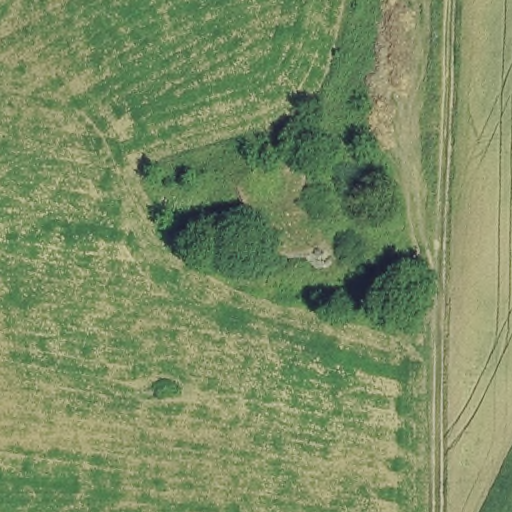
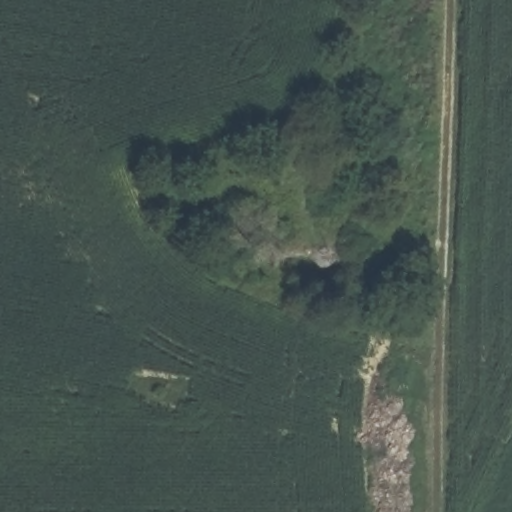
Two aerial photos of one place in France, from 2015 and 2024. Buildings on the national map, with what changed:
unchanged [(337,255),(269,263),(230,165),(293,137),(337,255)]

